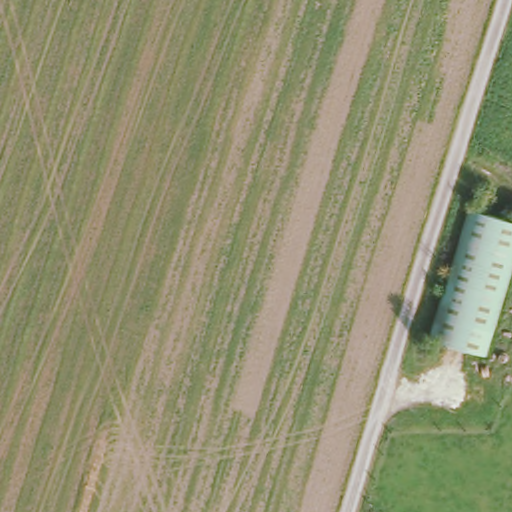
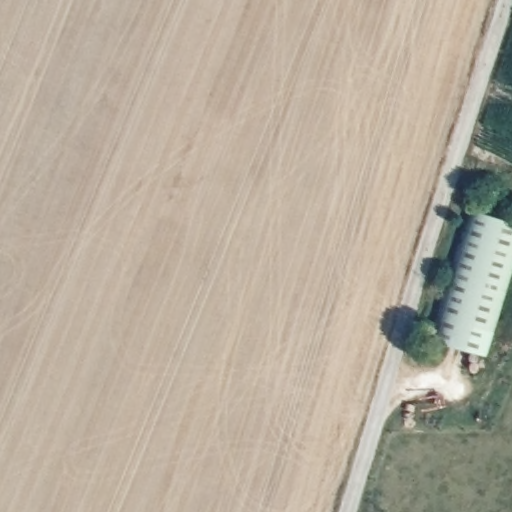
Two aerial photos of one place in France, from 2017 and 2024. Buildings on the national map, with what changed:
unchanged [(471,209),(512,221),(512,246),(479,352),(433,338),(471,209)]

